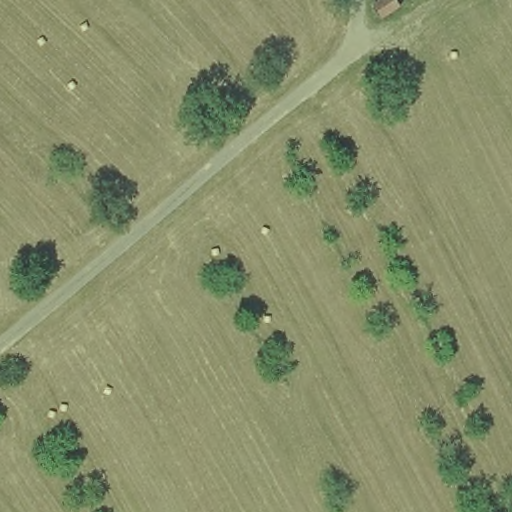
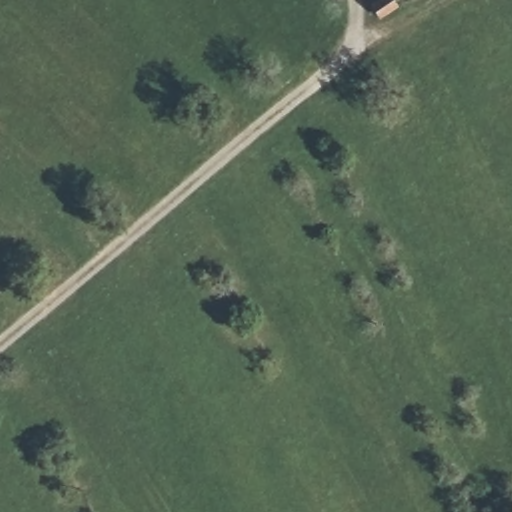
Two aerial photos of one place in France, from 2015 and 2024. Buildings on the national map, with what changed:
unchanged [(371,0),(395,0),(378,9),(371,0)]

